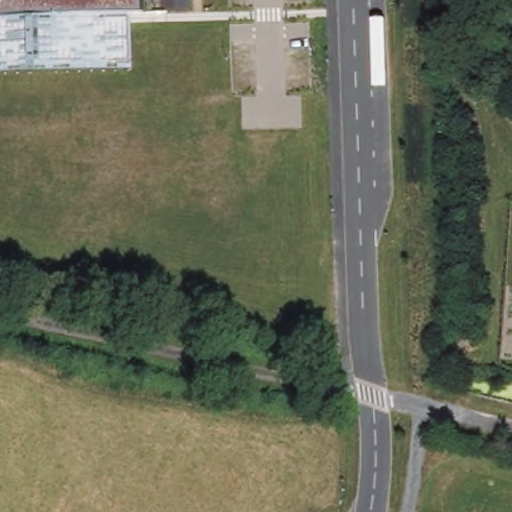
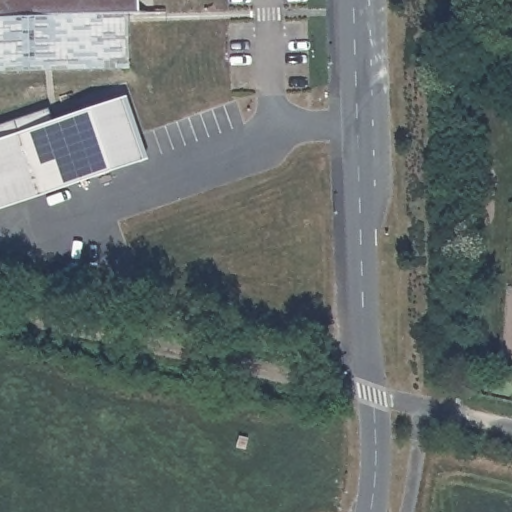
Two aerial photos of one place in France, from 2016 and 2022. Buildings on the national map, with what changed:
unchanged [(138,12),(126,12),(129,69),(0,73),(0,0),(137,0),(138,12)]
new [(54,121),(120,99),(123,107),(139,156),(0,203),(0,124),(49,108),(54,121)]
new [(141,162),(0,210),(0,203),(139,156),(141,162)]

